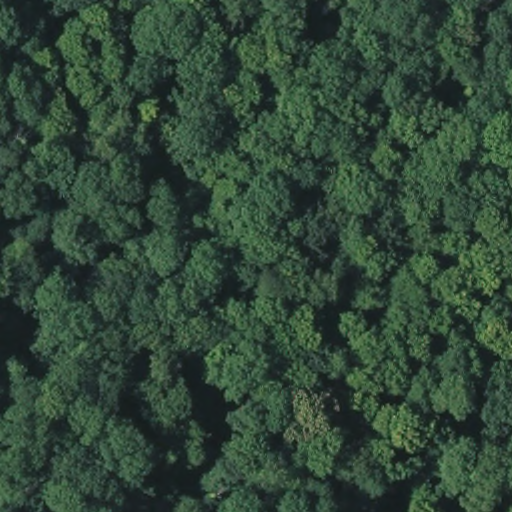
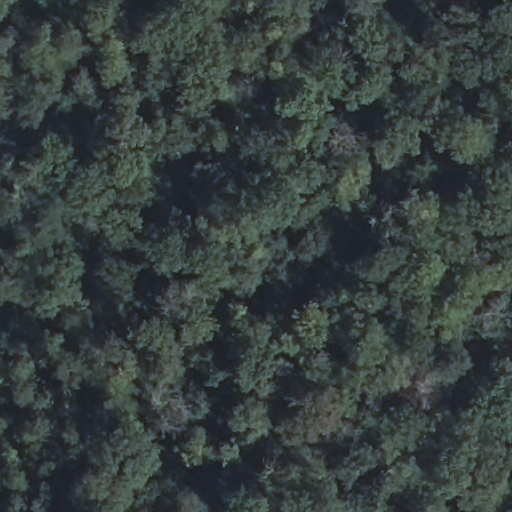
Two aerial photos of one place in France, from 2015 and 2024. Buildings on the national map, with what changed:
unchanged [(173,182),(155,203),(135,187),(152,163),(173,182)]
unchanged [(155,258),(137,286),(115,272),(130,248),(155,258)]

